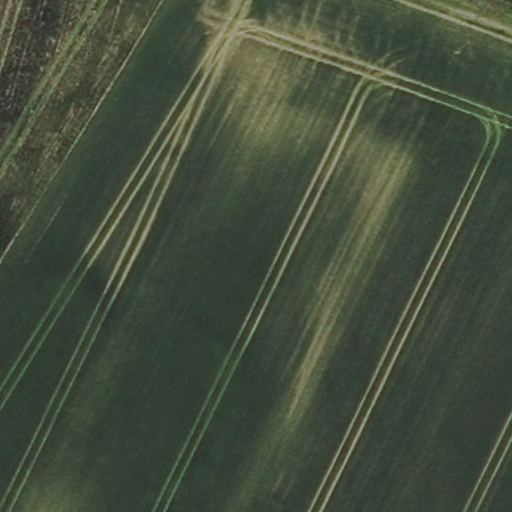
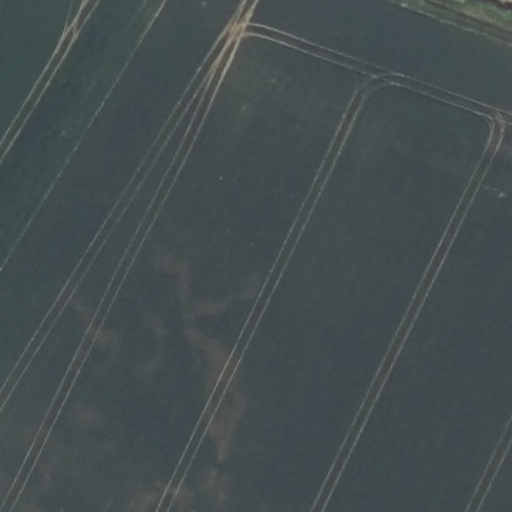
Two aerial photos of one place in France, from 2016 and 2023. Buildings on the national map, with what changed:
[]

